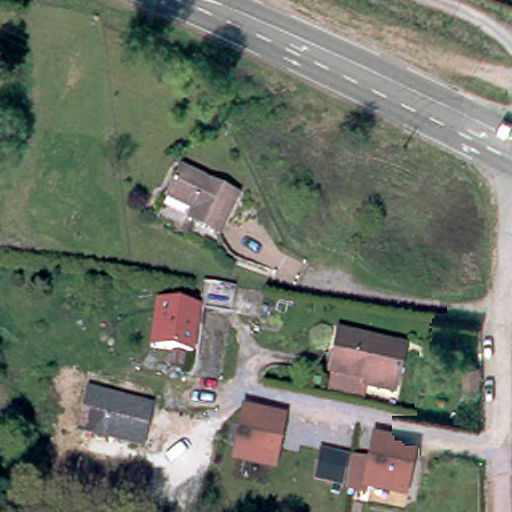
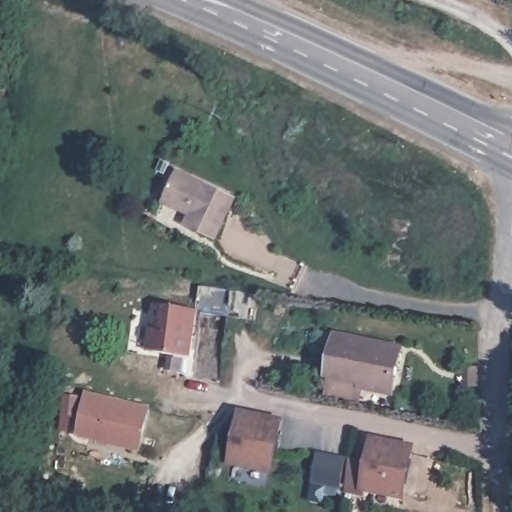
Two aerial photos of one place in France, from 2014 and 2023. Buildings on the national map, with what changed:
unchanged [(234,194),(220,225),(192,211),(185,222),(159,209),(179,169),(234,194)]
unchanged [(190,307),(194,282),(229,287),(225,312),(190,307)]
unchanged [(144,348),(149,302),(190,307),(185,355),(144,348)]
unchanged [(394,350),(385,396),(357,389),(357,383),(322,374),(329,338),(394,350)]
unchanged [(88,392),(152,405),(143,451),(77,433),(88,392)]
unchanged [(240,412),(284,420),(271,475),(230,465),(240,412)]
unchanged [(351,457),(369,459),(375,438),(417,446),(406,497),(347,489),(351,457)]

